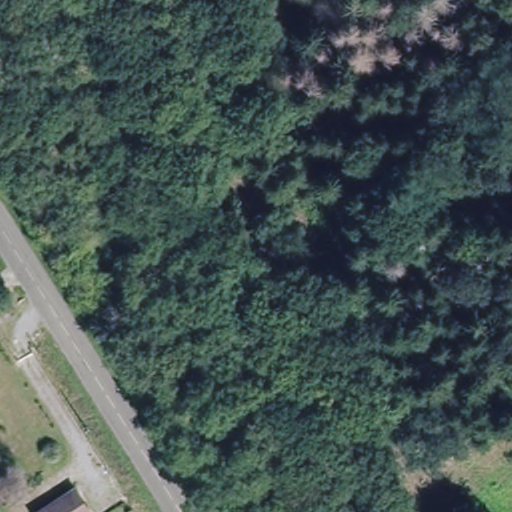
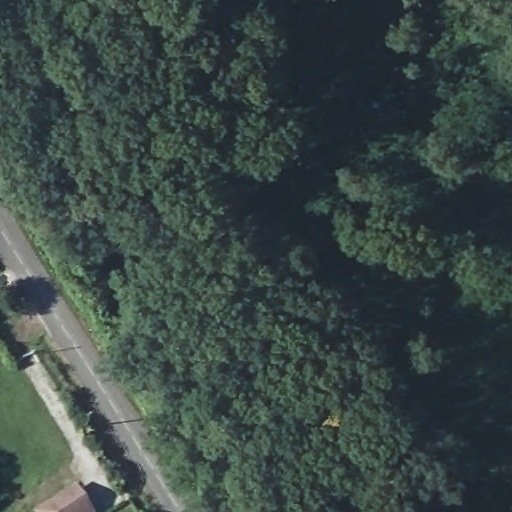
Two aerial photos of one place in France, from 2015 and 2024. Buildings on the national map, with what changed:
unchanged [(89,512),(41,512),(75,488),(89,512)]

